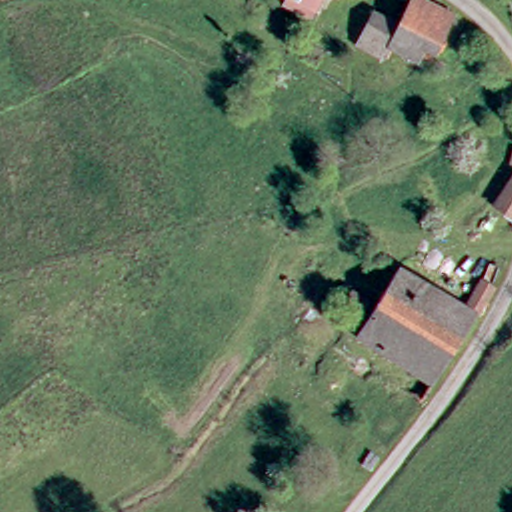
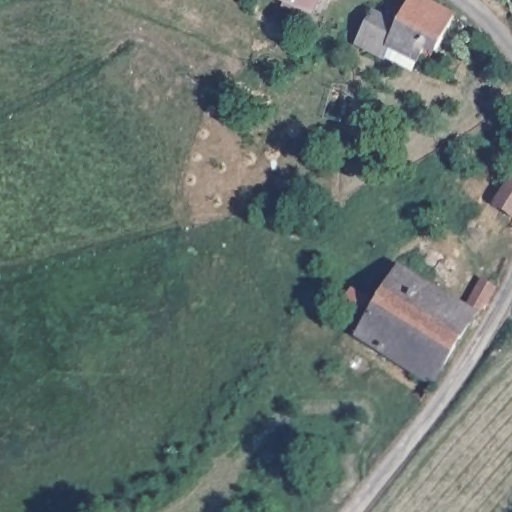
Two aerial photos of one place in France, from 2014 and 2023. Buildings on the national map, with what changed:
unchanged [(317,9),(299,0),(322,0),(317,9)]
unchanged [(467,11),(440,65),(398,43),(392,54),(371,43),(388,10),(408,20),(419,0),(445,0),(467,11)]
unchanged [(496,216),(512,194),(512,226),(496,216)]
unchanged [(362,343),(407,266),(473,304),(488,279),(500,285),(485,311),(441,389),(362,343)]

